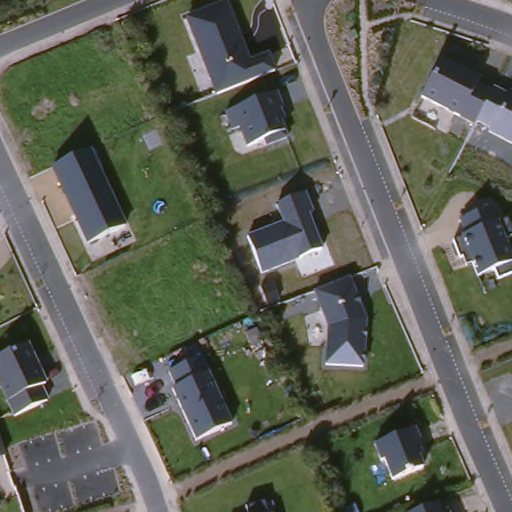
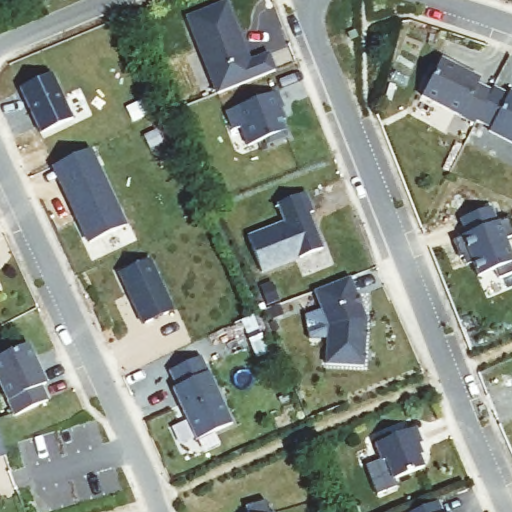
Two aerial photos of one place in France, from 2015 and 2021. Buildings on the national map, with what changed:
unchanged [(225,2),(249,61),(268,54),(273,69),(214,93),(185,17),(225,2)]
unchanged [(491,89),(473,124),(417,97),(437,60),(491,89)]
new [(52,74),(72,121),(39,136),(19,87),(52,74)]
unchanged [(512,94),(512,143),(488,131),(473,124),(491,89),(509,92),(512,94)]
unchanged [(239,128),(232,132),(224,112),(280,94),(284,105),(280,107),(285,120),(283,122),(288,139),(267,147),(263,140),(247,146),(239,128)]
unchanged [(51,167),(94,150),(126,226),(88,244),(51,167)]
unchanged [(247,236),(283,222),(276,204),(307,193),(315,212),(311,215),(324,250),(262,273),(247,236)]
unchanged [(477,277),(471,265),(467,266),(463,258),(461,259),(454,241),(465,236),(459,220),(493,208),(499,223),(509,219),(512,229),(512,240),(508,242),(512,252),(512,275),(498,280),(494,271),(477,277)]
new [(151,260),(172,311),(139,325),(118,273),(151,260)]
unchanged [(347,278),(367,321),(364,366),(324,361),(327,329),(312,292),(347,278)]
unchanged [(28,347),(46,385),(39,388),(48,403),(14,417),(0,387),(0,358),(28,347)]
unchanged [(172,387),(174,387),(168,372),(199,358),(206,373),(209,372),(231,426),(197,441),(172,387)]
unchanged [(414,428),(420,443),(417,446),(420,453),(416,455),(423,468),(394,479),(386,460),(381,462),(373,445),(414,428)]
unchanged [(244,507),(267,502),(269,512),(246,512),(244,507)]
unchanged [(439,502),(442,512),(411,512),(439,502)]

